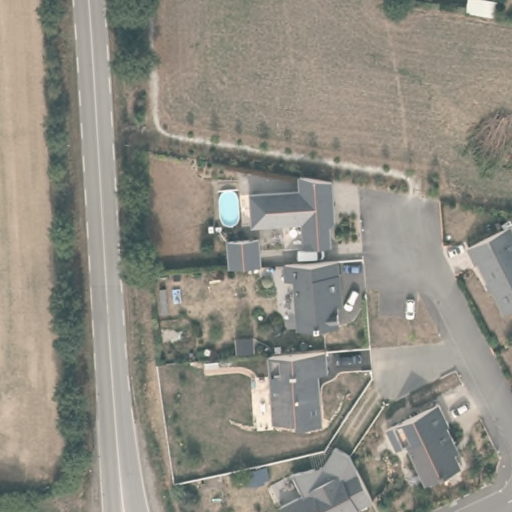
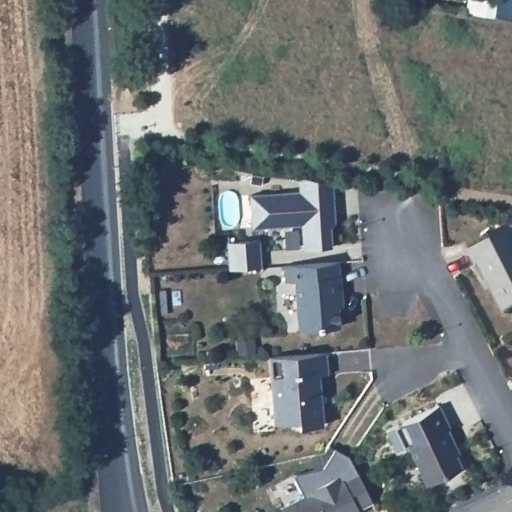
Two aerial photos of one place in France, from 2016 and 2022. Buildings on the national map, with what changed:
unchanged [(304,243),(302,218),(253,221),(251,190),(300,187),(300,173),(332,178),(333,196),(334,208),(335,218),(330,223),(331,242),(304,243)]
unchanged [(480,263),(476,264),(468,248),(510,227),(512,231),(512,310),(505,313),(480,263)]
unchanged [(261,267),(231,269),(229,242),(259,240),(261,267)]
unchanged [(338,306),(339,326),(298,329),(295,281),(286,281),(285,265),(337,262),(338,275),(340,275),(341,296),(342,306),(338,306)]
unchanged [(327,373),(319,374),(320,393),(323,424),(299,426),(298,420),(275,422),(270,356),(326,352),(327,373)]
unchanged [(421,479),(402,440),(441,422),(450,439),(446,441),(456,462),(421,479)]
unchanged [(266,465),(269,477),(249,482),(246,469),(266,465)]
unchanged [(308,491),(340,474),(342,477),(356,470),(372,502),(358,509),(360,512),(359,512),(283,512),(280,508),(302,497),(301,494),(308,491)]

